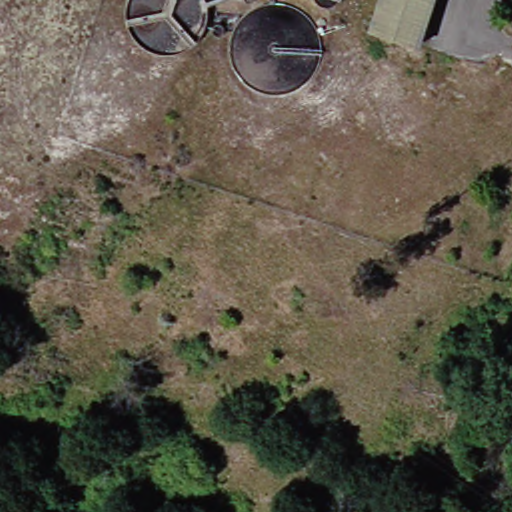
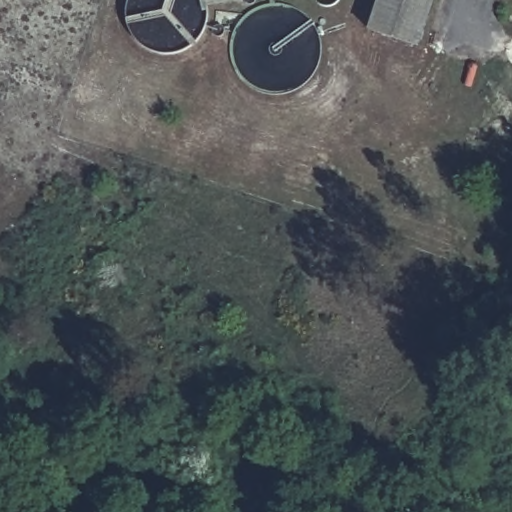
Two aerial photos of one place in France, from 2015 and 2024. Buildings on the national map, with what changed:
unchanged [(365,0),(427,0),(413,41),(356,21),(365,0)]

